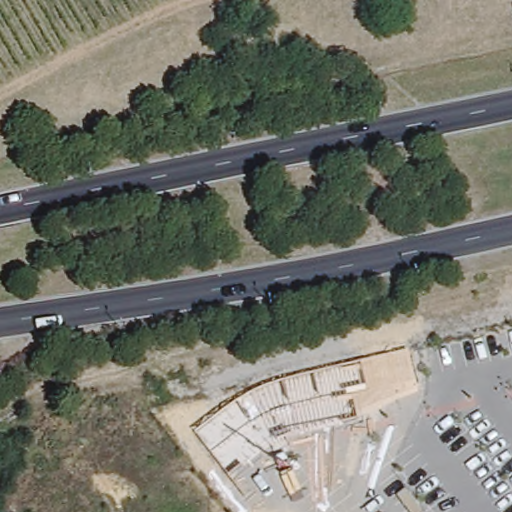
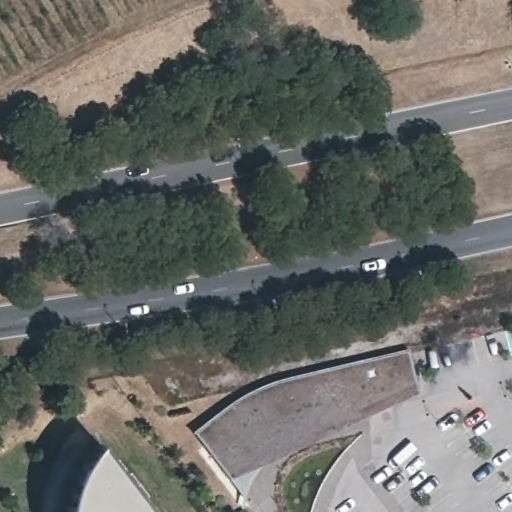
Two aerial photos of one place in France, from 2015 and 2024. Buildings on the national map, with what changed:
unchanged [(235,403),(279,381),(358,361),(408,349),(417,390),(357,418),(278,437),(230,474),(196,431),(235,403)]
new [(146,512),(68,512),(68,511),(73,488),(84,466),(96,448),(146,512)]

